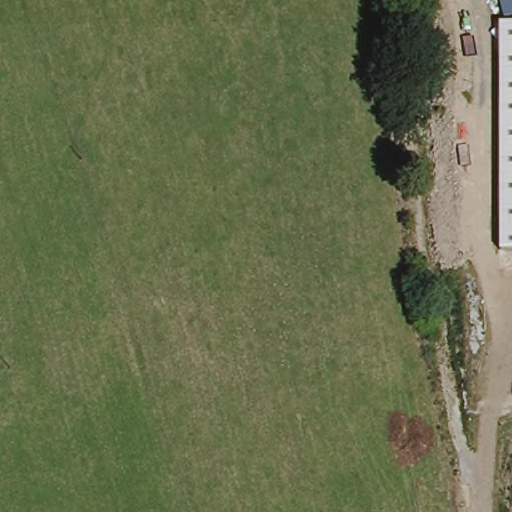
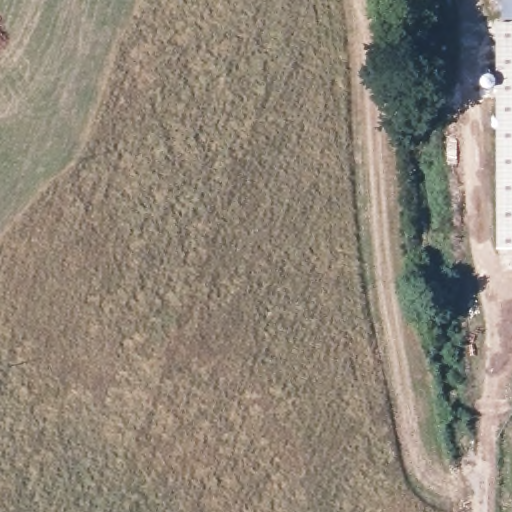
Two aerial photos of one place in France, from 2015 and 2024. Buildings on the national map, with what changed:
unchanged [(512,0),(512,19),(504,21),(499,0),(512,0)]
unchanged [(497,23),(504,21),(512,19),(512,249),(498,248),(497,23)]

